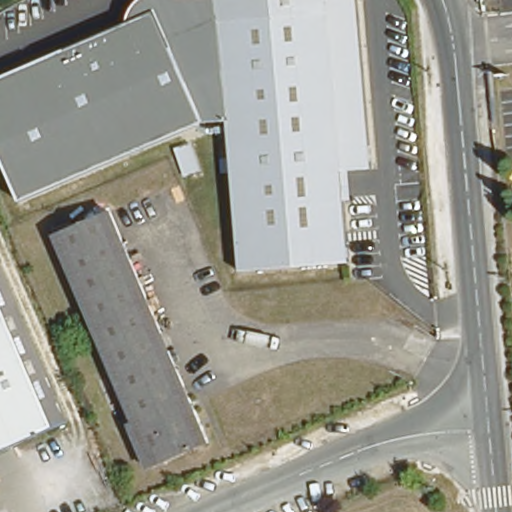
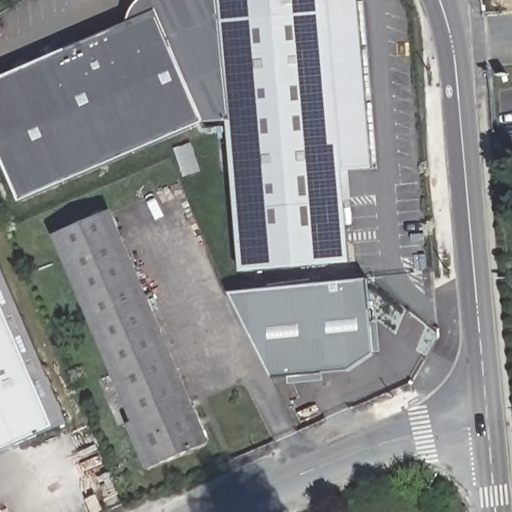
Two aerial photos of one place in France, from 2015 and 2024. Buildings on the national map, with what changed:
unchanged [(20,201),(0,154),(0,79),(130,24),(130,18),(134,10),(142,1),(144,0),(212,0),(220,65),(207,67),(214,120),(204,122),(20,201)]
unchanged [(342,161),(354,264),(245,276),(226,118),(214,120),(207,67),(220,65),(212,0),(353,0),(371,158),(342,161)]
unchanged [(203,170),(183,178),(175,151),(194,144),(203,170)]
unchanged [(206,444),(146,468),(129,426),(134,424),(54,237),(109,214),(206,444)]
unchanged [(67,421),(0,450),(0,264),(67,421)]
new [(351,371),(325,373),(325,382),(289,385),(289,377),(273,378),(230,293),(367,282),(375,356),(351,371)]
new [(1,512),(0,512),(0,511),(1,512)]

